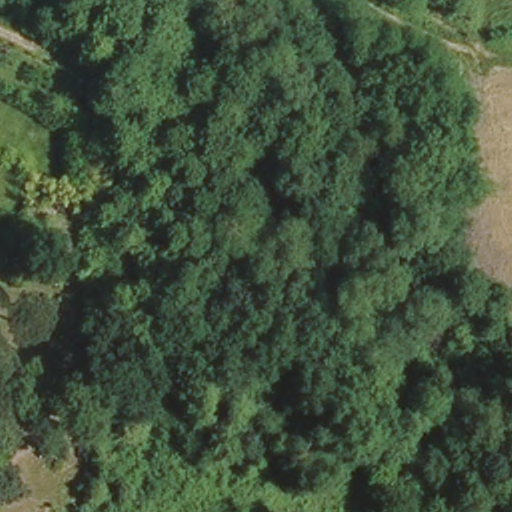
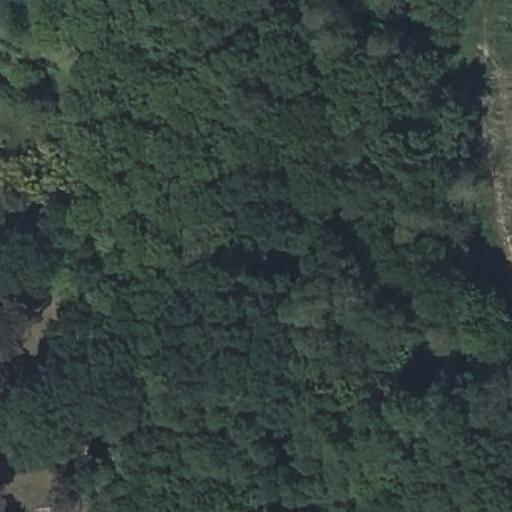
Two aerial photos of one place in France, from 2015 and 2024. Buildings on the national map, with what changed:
[]

